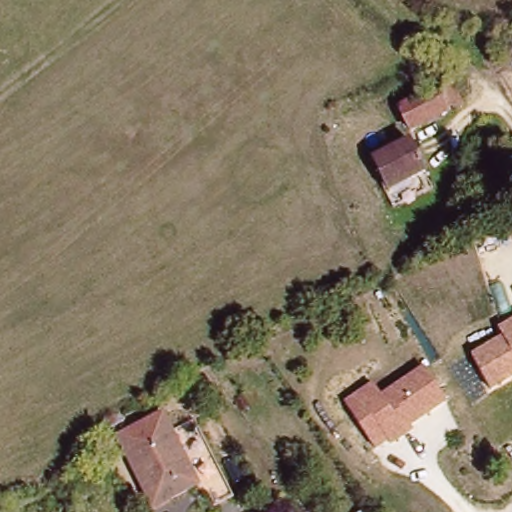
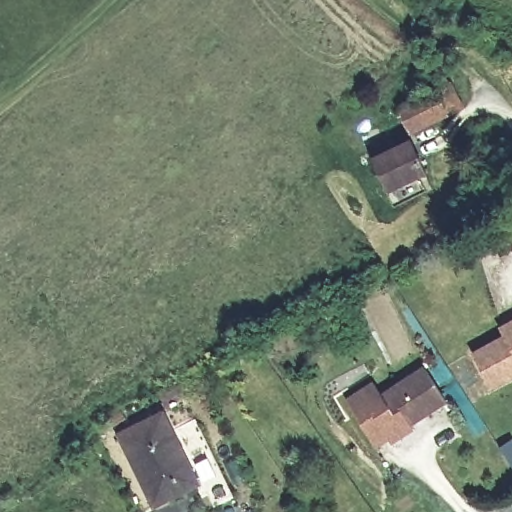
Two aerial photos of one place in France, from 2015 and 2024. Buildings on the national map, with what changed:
unchanged [(452,96),(434,81),(443,70),(462,84),(452,96)]
unchanged [(410,135),(396,108),(436,91),(452,118),(410,135)]
unchanged [(390,192),(376,163),(414,146),(426,174),(390,192)]
unchanged [(504,338),(500,330),(512,324),(512,381),(493,391),(474,352),(504,338)]
unchanged [(347,400),(374,383),(381,395),(428,367),(448,401),(413,424),(417,432),(380,453),(347,400)]
unchanged [(108,438),(152,416),(162,436),(185,425),(226,505),(212,512),(206,512),(193,487),(148,511),(108,438)]

